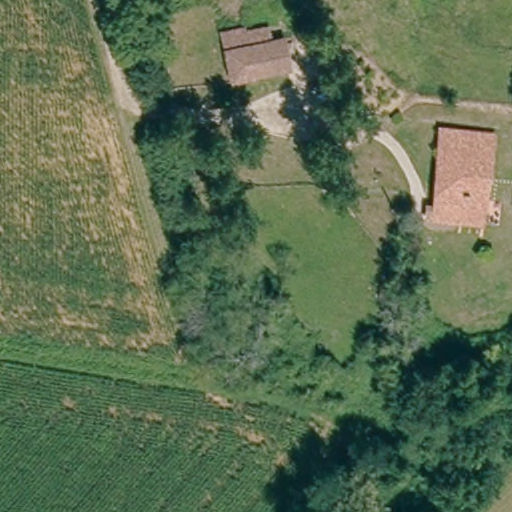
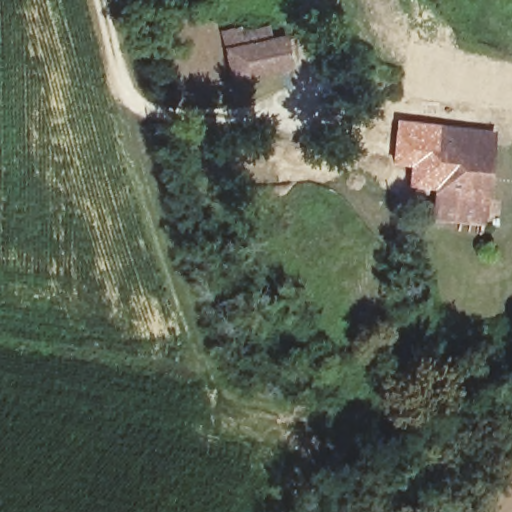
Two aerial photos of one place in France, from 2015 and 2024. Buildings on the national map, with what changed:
unchanged [(289,79),(232,91),(226,61),(283,50),(289,79)]
new [(407,188),(409,167),(390,166),(395,122),(441,127),(433,190),(407,188)]
unchanged [(483,224),(430,217),(441,127),(494,134),(483,224)]

